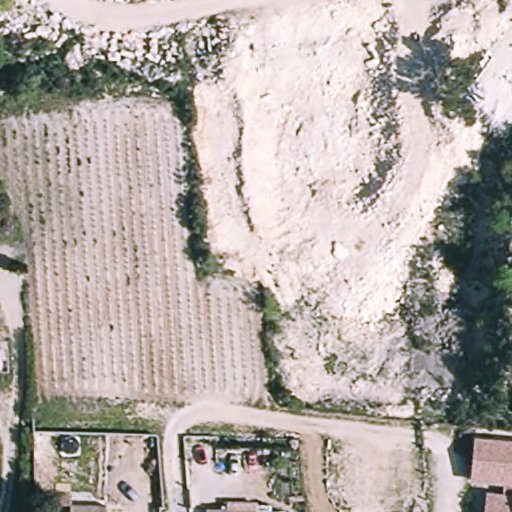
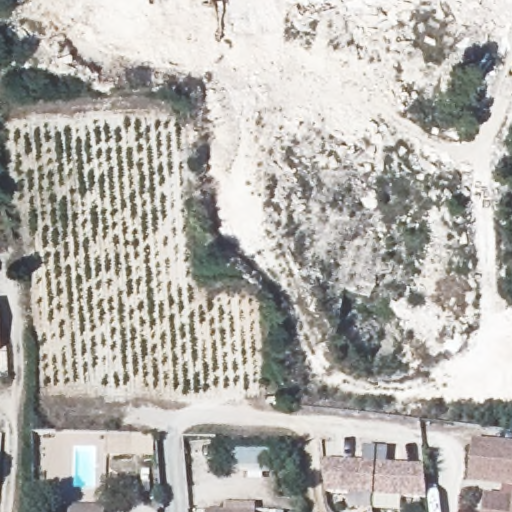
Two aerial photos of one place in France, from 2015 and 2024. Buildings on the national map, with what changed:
unchanged [(470,481),(474,438),(512,441),(512,486),(470,481)]
new [(363,462),(364,447),(387,448),(386,465),(423,466),(425,500),(327,493),(322,460),(363,462)]
unchanged [(483,512),(485,496),(512,497),(512,512),(483,512)]
unchanged [(69,512),(69,498),(106,500),(106,512),(69,512)]
unchanged [(202,512),(203,505),(254,507),(254,512),(202,512)]

